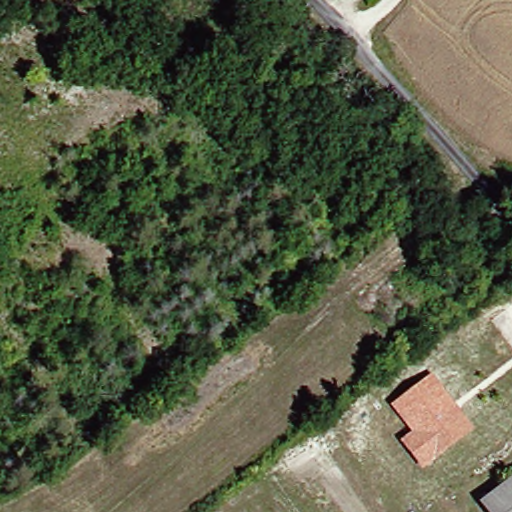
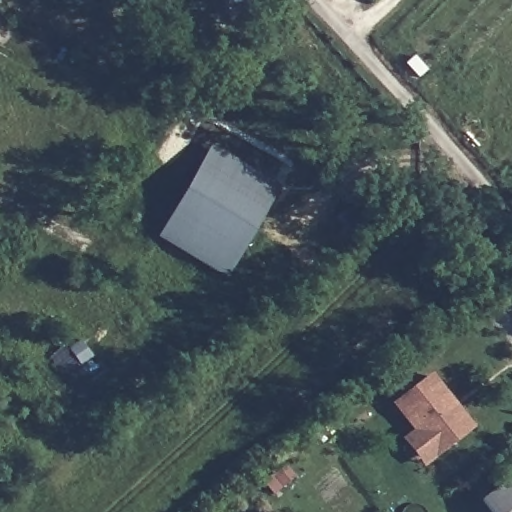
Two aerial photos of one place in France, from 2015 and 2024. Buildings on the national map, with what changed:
new [(212,145),(278,185),(221,280),(152,239),(212,145)]
new [(372,196),(385,210),(360,233),(347,219),(372,196)]
unchanged [(474,429),(421,470),(397,440),(410,432),(390,405),(431,373),(474,429)]
unchanged [(512,472),(512,512),(484,512),(475,498),(512,472)]

